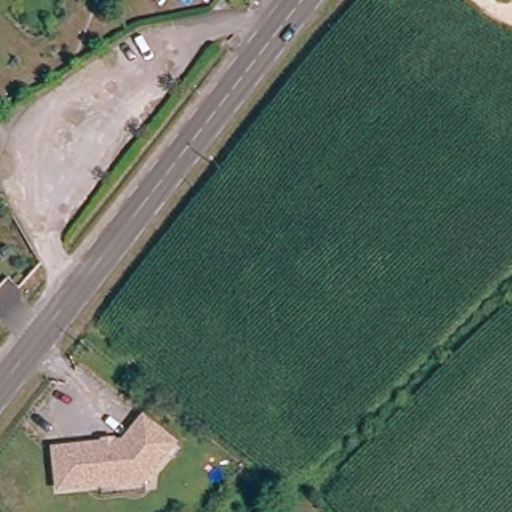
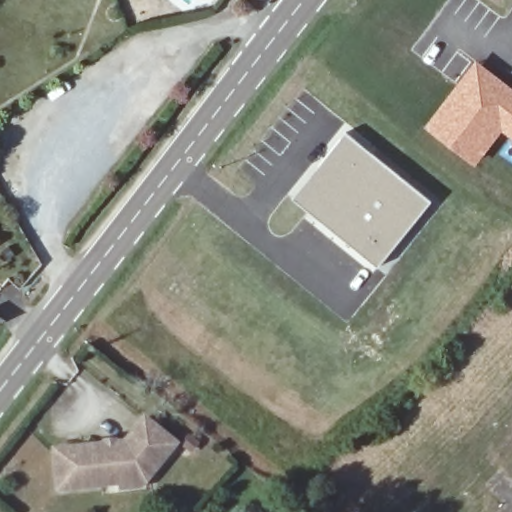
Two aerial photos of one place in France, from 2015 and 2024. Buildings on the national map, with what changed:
new [(512,88),(512,139),(502,131),(475,166),(423,127),(475,60),(512,88)]
new [(293,197),(344,134),(428,201),(377,265),(293,197)]
unchanged [(0,242),(0,239),(2,241),(0,242)]
unchanged [(119,487),(118,482),(59,488),(55,447),(124,441),(145,417),(175,443),(144,480),(139,485),(119,487)]

